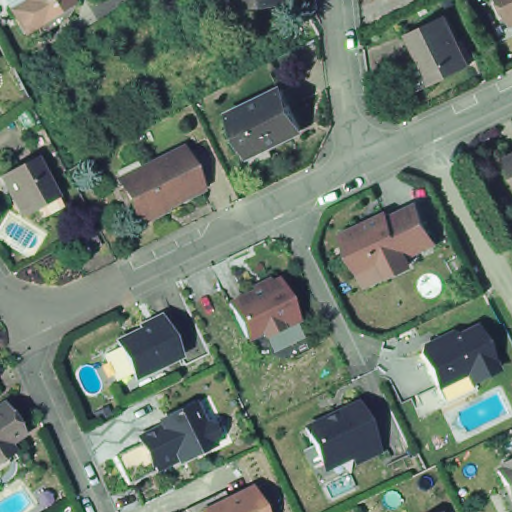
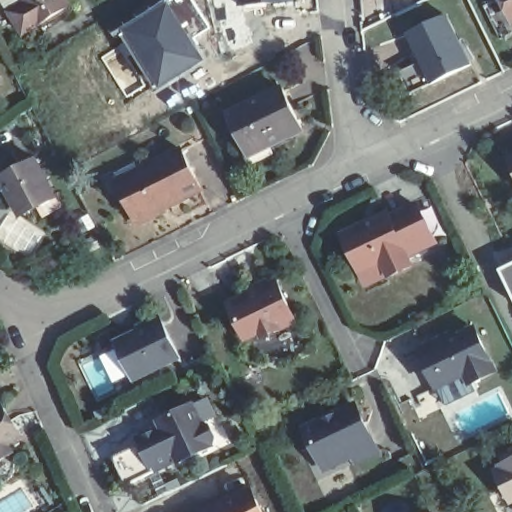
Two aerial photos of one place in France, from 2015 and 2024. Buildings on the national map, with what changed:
unchanged [(17,40),(3,17),(18,7),(14,0),(55,0),(62,11),(17,40)]
new [(167,0),(195,40),(208,61),(158,94),(118,32),(167,0)]
new [(195,40),(167,0),(194,0),(212,28),(195,40)]
unchanged [(238,6),(237,0),(288,0),(288,1),(238,6)]
unchanged [(510,0),(512,0),(512,4),(510,0)]
unchanged [(412,67),(422,62),(408,32),(448,14),(472,63),(432,82),(422,86),(412,67)]
unchanged [(0,72),(0,70),(1,71),(0,72)]
unchanged [(283,86),(302,125),(285,133),(248,150),(234,119),(230,111),(283,86)]
unchanged [(142,166),(182,147),(202,187),(138,217),(130,201),(118,178),(142,166)]
unchanged [(15,212),(0,183),(0,177),(33,159),(52,194),(15,212)]
unchanged [(361,277),(342,240),(367,229),(368,232),(376,229),(374,225),(385,220),(387,224),(415,210),(432,244),(403,257),(410,270),(388,280),(367,290),(361,277)]
unchanged [(99,244),(88,249),(82,237),(93,232),(99,244)]
new [(503,273),(512,269),(512,292),(503,273)]
unchanged [(253,350),(246,335),(229,300),(255,287),(252,282),(266,276),(268,280),(276,276),(292,309),(300,327),(253,350)]
unchanged [(122,342),(147,330),(145,326),(163,316),(165,321),(183,357),(139,378),(122,342)]
unchanged [(445,400),(437,383),(420,350),(422,343),(433,338),(440,340),(474,324),(495,366),(470,378),(475,386),(445,400)]
unchanged [(302,446),(313,441),(305,423),(335,410),(342,406),(355,400),(377,447),(356,457),(317,476),(302,446)]
unchanged [(170,461),(147,472),(148,477),(121,490),(107,462),(135,450),(132,444),(157,432),(153,426),(158,423),(187,410),(203,402),(225,448),(192,465),(190,460),(173,468),(170,461)]
unchanged [(0,451),(0,418),(15,442),(0,451)]
unchanged [(500,490),(508,486),(501,472),(507,470),(505,466),(512,463),(512,512),(511,512),(500,490)]
unchanged [(236,495),(238,500),(260,490),(270,512),(200,512),(236,495)]

